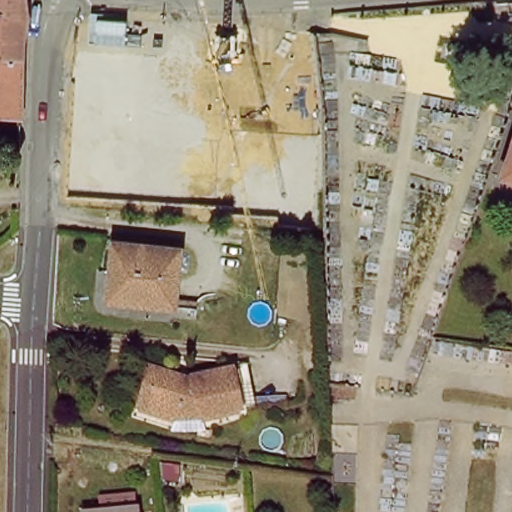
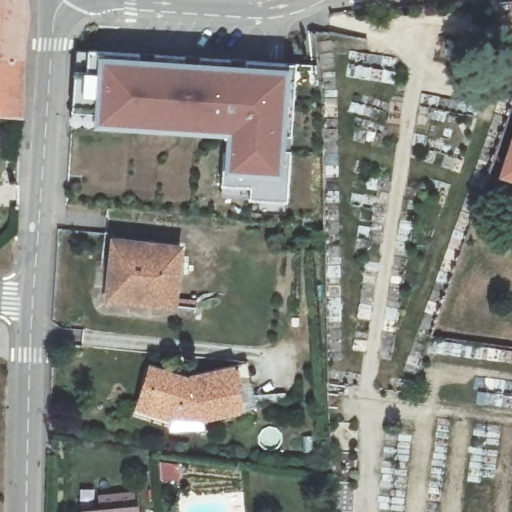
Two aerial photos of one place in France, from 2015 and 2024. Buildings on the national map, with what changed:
unchanged [(31,17),(0,14),(0,0),(31,0),(31,17)]
unchanged [(28,58),(0,56),(0,14),(31,17),(28,58)]
demolished [(178,18),(172,113),(98,108),(105,62),(100,18),(178,18)]
new [(288,204),(251,201),(250,188),(221,186),(222,151),(226,151),(226,137),(95,127),(73,125),(73,109),(75,71),(76,49),(87,50),(141,53),(137,59),(152,59),(154,54),(186,56),(183,62),(199,63),(200,58),(233,60),(228,66),(245,66),(246,60),(296,65),(288,204)]
unchanged [(27,80),(25,116),(0,114),(0,56),(28,58),(27,80)]
unchanged [(505,174),(512,159),(512,177),(505,174)]
unchanged [(110,287),(116,243),(180,250),(174,305),(152,304),(108,302),(110,287)]
unchanged [(149,431),(151,418),(156,384),(182,386),(181,391),(188,392),(202,383),(232,371),(241,388),(246,405),(215,422),(213,416),(201,420),(188,420),(186,433),(149,431)]
unchanged [(142,512),(85,512),(85,508),(142,504),(142,512)]

